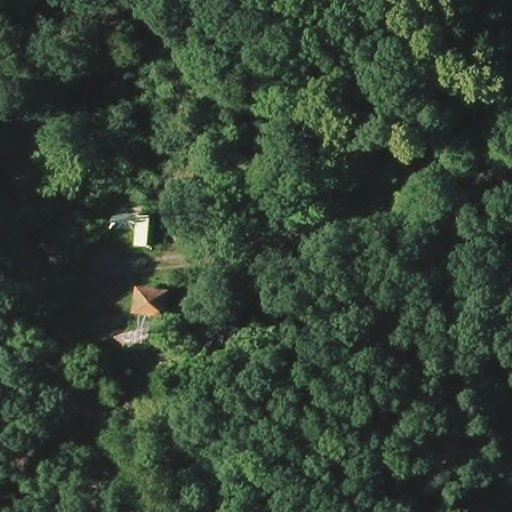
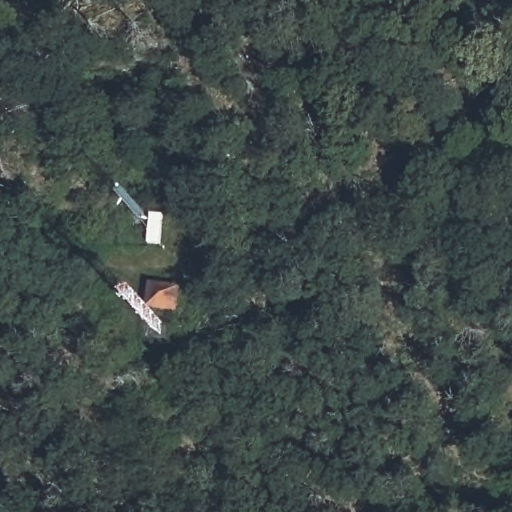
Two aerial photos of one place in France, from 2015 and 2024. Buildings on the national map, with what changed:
unchanged [(155,286),(187,293),(185,318),(150,315),(155,286)]

